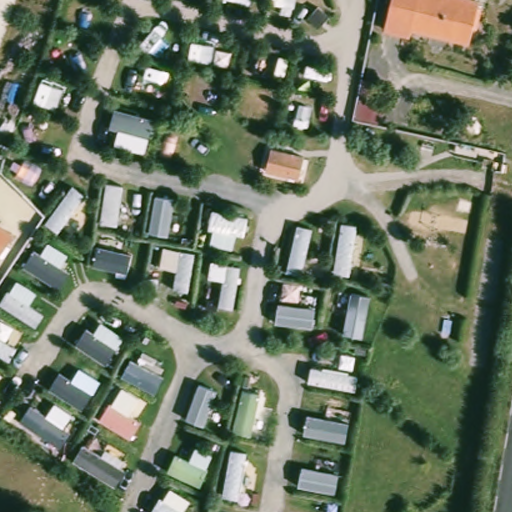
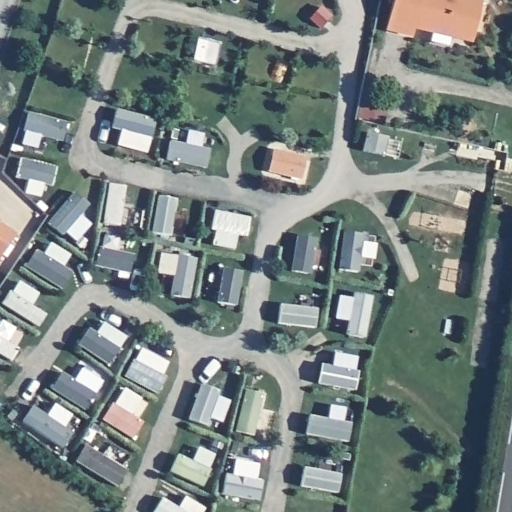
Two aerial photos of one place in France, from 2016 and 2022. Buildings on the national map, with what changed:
unchanged [(453,0),(458,0),(458,3),(487,9),(478,48),(420,34),(418,41),(393,36),(401,0),(448,0),(452,1),(453,0)]
unchanged [(308,159),(302,180),(278,174),(271,172),(276,156),(277,152),(308,159)]
unchanged [(19,237),(1,263),(0,262),(0,224),(19,237)]

